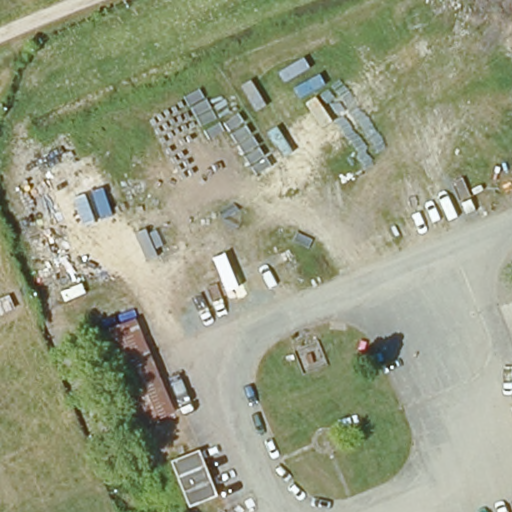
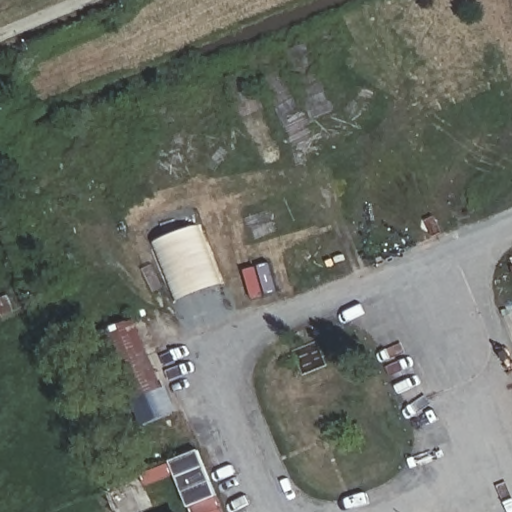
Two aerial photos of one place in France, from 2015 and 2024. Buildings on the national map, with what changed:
new [(177,301),(154,242),(199,224),(224,282),(177,301)]
unchanged [(9,297),(14,309),(0,315),(0,301),(9,297)]
unchanged [(174,418),(140,432),(100,334),(135,320),(174,418)]
unchanged [(185,471),(160,482),(154,467),(180,457),(185,471)]

